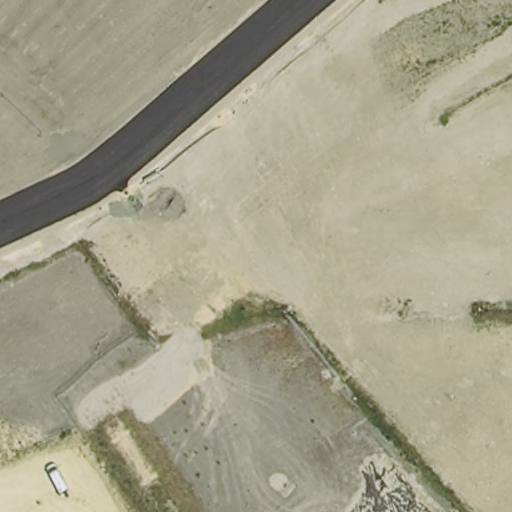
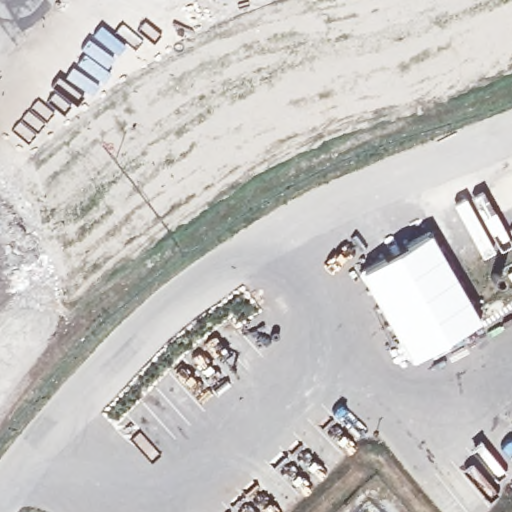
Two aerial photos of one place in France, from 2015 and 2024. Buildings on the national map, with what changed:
new [(428,231),(480,319),(410,361),(357,271),(428,231)]

